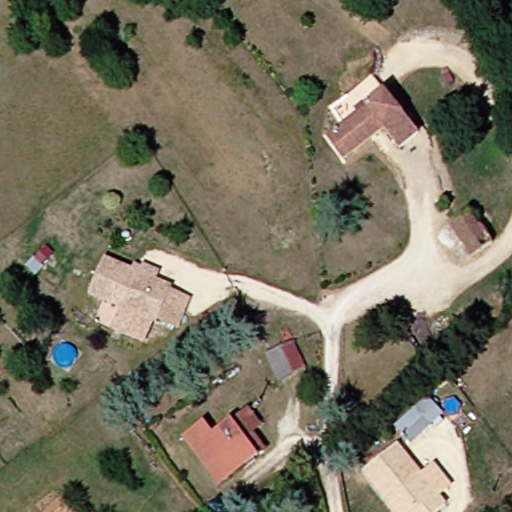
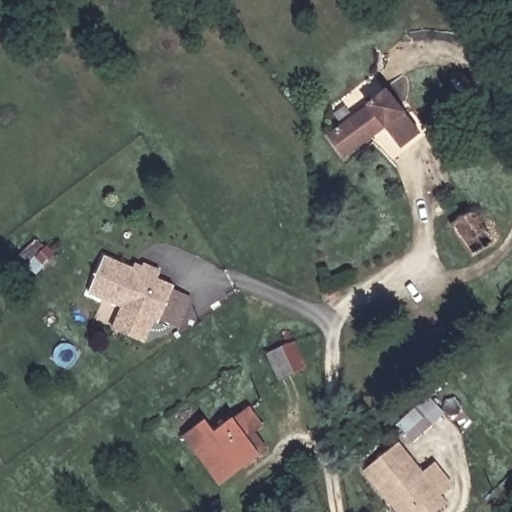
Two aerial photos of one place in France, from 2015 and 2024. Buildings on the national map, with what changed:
unchanged [(398,92),(413,114),(429,135),(409,149),(393,128),(353,157),(338,137),(352,127),(342,114),(371,93),(389,80),(398,92)]
unchanged [(473,257),(453,226),(474,212),(494,244),(473,257)]
unchanged [(119,330),(129,307),(95,293),(111,257),(178,287),(177,291),(195,298),(183,326),(165,318),(163,322),(158,320),(148,342),(119,330)]
unchanged [(267,355),(296,342),(308,368),(279,381),(267,355)]
unchanged [(451,418),(417,449),(401,431),(435,401),(451,418)]
unchanged [(210,423),(219,436),(254,410),(266,427),(258,432),(271,450),(225,484),(190,437),(210,423)]
unchanged [(393,504),(370,476),(403,450),(427,479),(439,469),(458,492),(445,502),(452,510),(449,512),(399,512),(393,504)]

